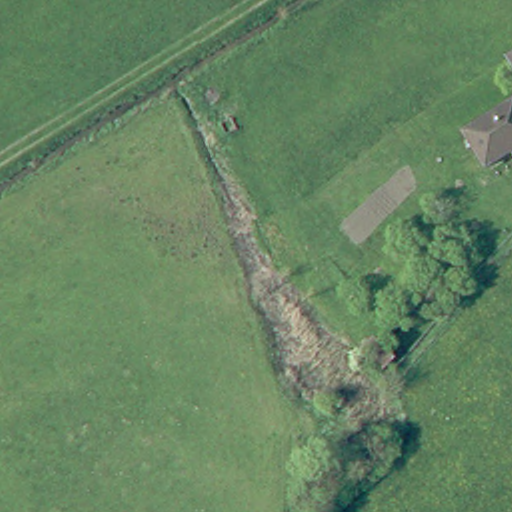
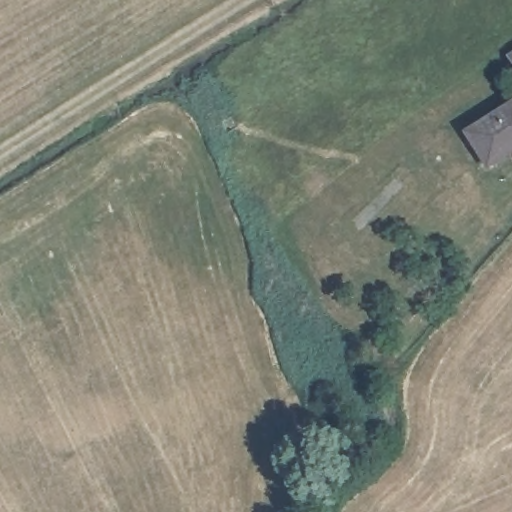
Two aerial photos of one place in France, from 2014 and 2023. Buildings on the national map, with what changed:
unchanged [(512,54),(512,56),(511,55),(512,54)]
unchanged [(468,130),(512,99),(512,150),(490,165),(468,130)]

